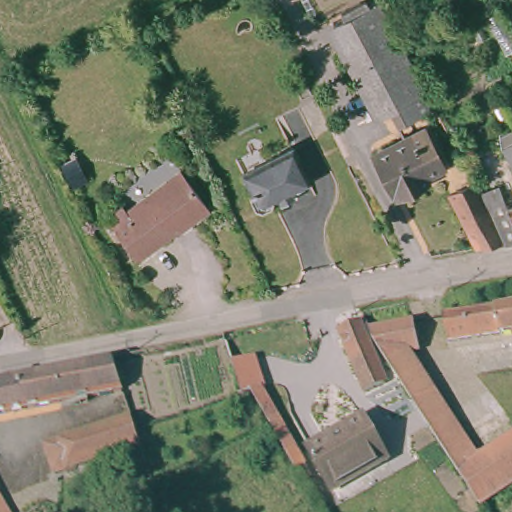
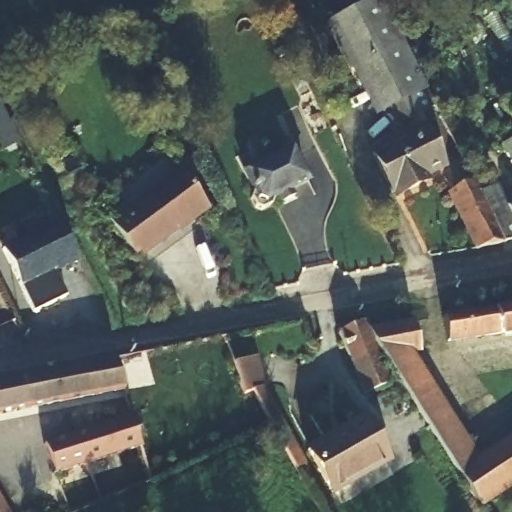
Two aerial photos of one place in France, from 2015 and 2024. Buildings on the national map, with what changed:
unchanged [(462,0),(480,0),(485,9),(458,23),(450,6),(462,0)]
unchanged [(393,126),(385,111),(371,117),(330,28),(343,22),(340,16),(357,6),(360,13),(377,4),(423,92),(432,108),(393,126)]
unchanged [(509,118),(499,98),(510,91),(512,95),(512,124),(509,118)]
unchanged [(368,153),(417,126),(440,168),(406,184),(410,190),(391,199),(368,153)]
unchanged [(500,147),(512,142),(512,169),(500,147)]
unchanged [(286,151),(305,185),(275,199),(273,204),(272,209),(269,212),(265,214),(260,214),(255,212),(237,174),(286,151)]
unchanged [(133,206),(186,168),(214,205),(195,218),(191,215),(180,223),(183,227),(143,255),(109,213),(128,200),(133,206)]
unchanged [(485,199),(508,242),(475,245),(447,190),(475,179),(485,199)]
unchanged [(508,242),(485,199),(501,195),(510,213),(512,213),(512,242),(508,242)]
new [(78,261),(55,272),(66,295),(34,311),(22,287),(3,247),(60,220),(78,261)]
unchanged [(511,328),(444,340),(440,314),(512,303),(512,332),(511,328)]
unchanged [(409,325),(415,356),(404,358),(382,363),(369,344),(365,334),(409,325)]
unchanged [(384,390),(362,399),(334,334),(355,326),(384,390)]
unchanged [(404,358),(476,462),(458,475),(436,442),(432,437),(382,363),(404,358)]
unchanged [(228,366),(248,361),(256,386),(251,387),(265,406),(303,470),(295,476),(263,423),(248,398),(238,401),(228,366)]
unchanged [(120,395),(0,419),(0,384),(109,362),(120,395)]
unchanged [(325,492),(303,450),(362,419),(384,461),(325,492)]
unchanged [(137,450),(50,477),(40,448),(128,421),(137,450)]
unchanged [(512,438),(512,485),(480,507),(458,475),(476,462),(512,438)]
unchanged [(0,497),(9,512),(0,512),(0,497)]

